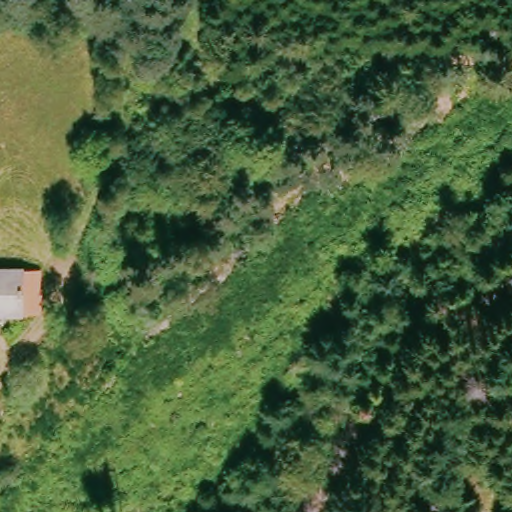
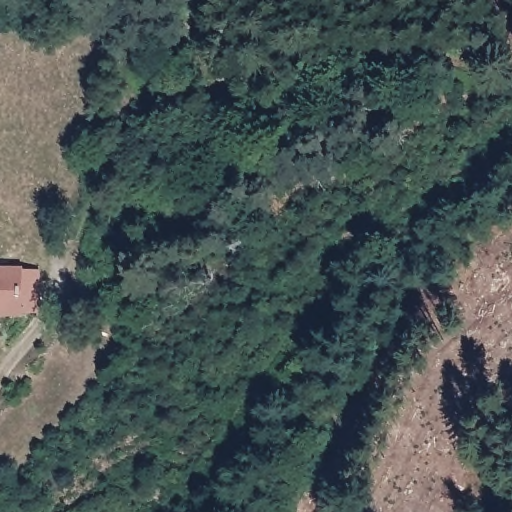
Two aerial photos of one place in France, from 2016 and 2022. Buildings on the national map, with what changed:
unchanged [(34,314),(0,314),(0,272),(34,271),(34,314)]

